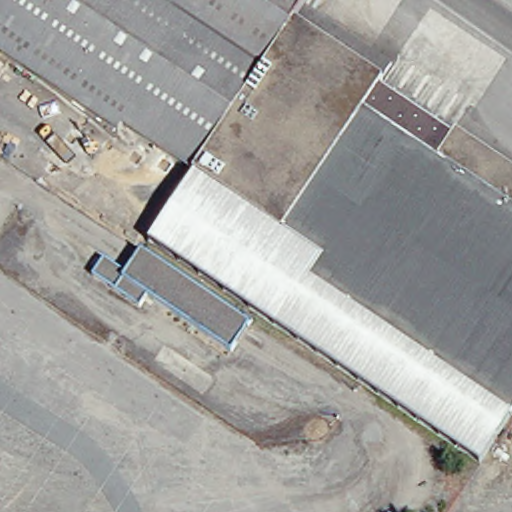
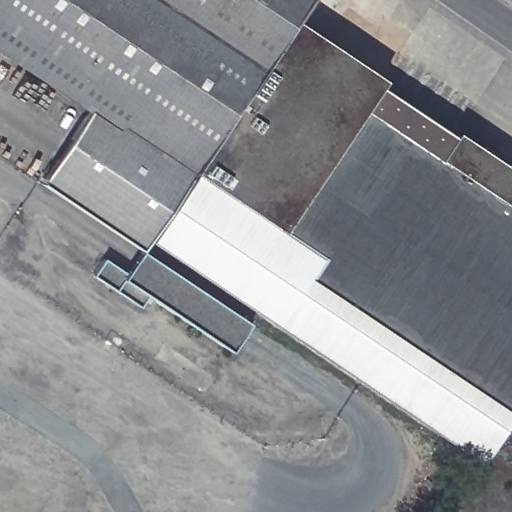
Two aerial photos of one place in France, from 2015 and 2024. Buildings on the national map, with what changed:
unchanged [(188,172),(118,126),(114,131),(0,54),(0,0),(318,0),(310,13),(387,64),(377,80),(290,22),(188,172)]
unchanged [(377,80),(373,86),(450,137),(452,135),(512,175),(512,407),(506,416),(505,417),(475,462),(144,239),(172,196),(188,172),(290,22),(377,80)]
new [(114,131),(118,126),(188,172),(172,196),(144,239),(141,249),(40,185),(88,114),(114,131)]
unchanged [(83,276),(90,265),(94,258),(116,273),(131,252),(240,323),(221,352),(136,296),(130,307),(83,276)]
unchanged [(512,407),(512,420),(506,416),(512,407)]

